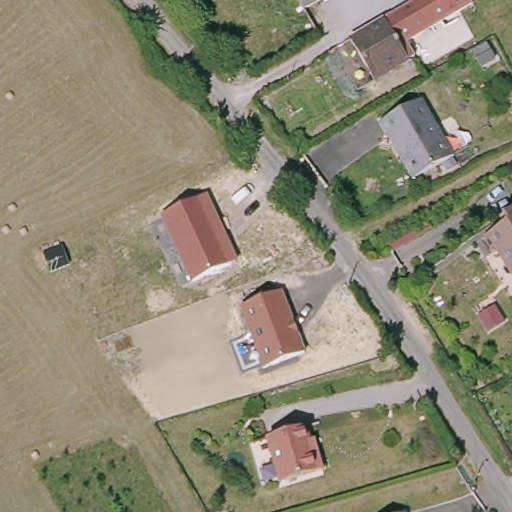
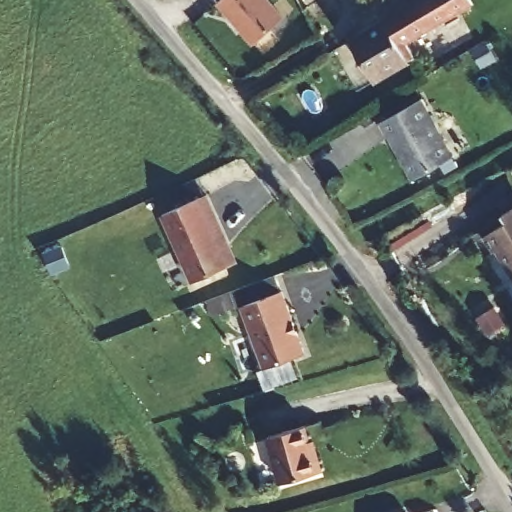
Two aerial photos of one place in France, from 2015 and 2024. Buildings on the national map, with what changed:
new [(256,45),(218,2),(220,0),(271,0),(286,16),(256,45)]
unchanged [(416,0),(470,0),(472,2),(408,44),(413,53),(373,78),(364,68),(349,43),(416,0)]
unchanged [(421,100),(454,153),(419,174),(394,136),(391,137),(382,123),(421,100)]
unchanged [(237,263),(191,283),(161,216),(208,195),(237,263)]
unchanged [(511,224),(506,214),(512,211),(512,280),(499,256),(494,258),(484,237),(511,224)]
unchanged [(241,307),(284,292),(305,352),(264,368),(241,307)]
unchanged [(311,451),(320,450),(324,472),(275,482),(262,436),(306,427),(311,451)]

